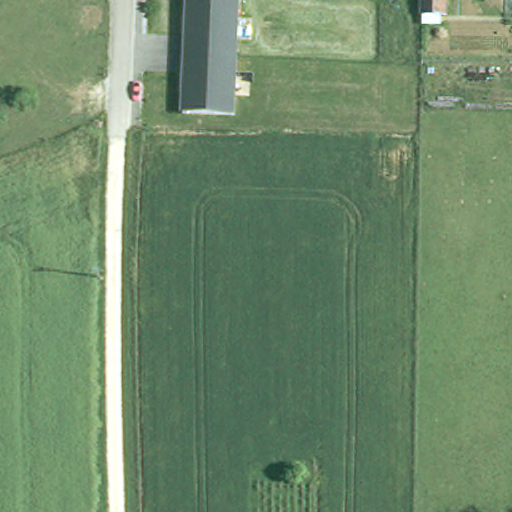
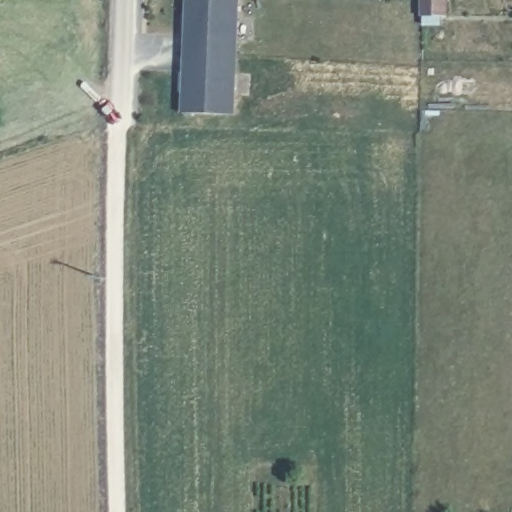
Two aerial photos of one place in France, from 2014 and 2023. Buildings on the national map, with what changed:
unchanged [(182,110),(187,0),(237,0),(232,112),(182,110)]
unchanged [(445,0),(445,15),(422,15),(422,0),(445,0)]

